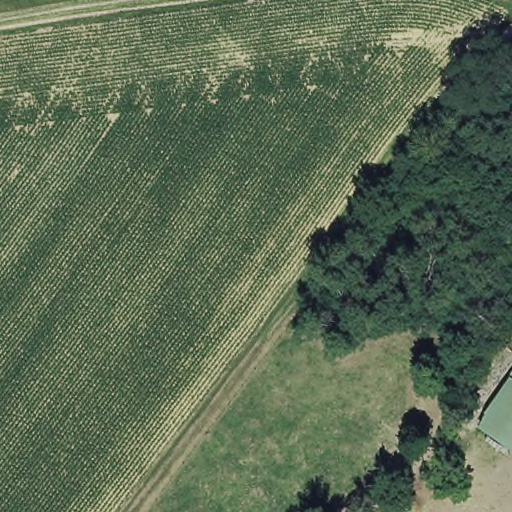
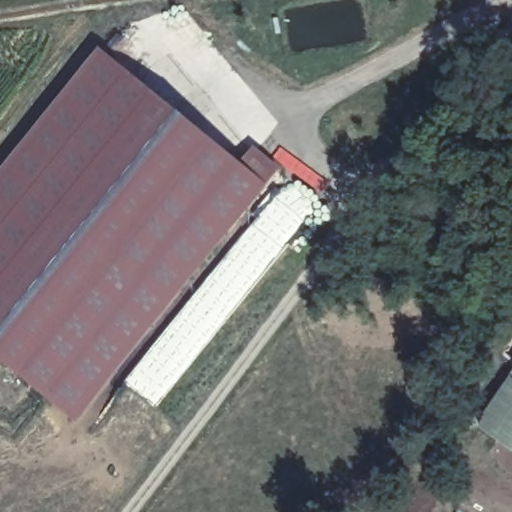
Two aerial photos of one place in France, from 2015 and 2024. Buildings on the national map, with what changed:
new [(78,420),(0,357),(0,176),(105,51),(242,163),(256,146),(284,169),(78,420)]
unchanged [(512,384),(512,451),(481,429),(512,384)]

